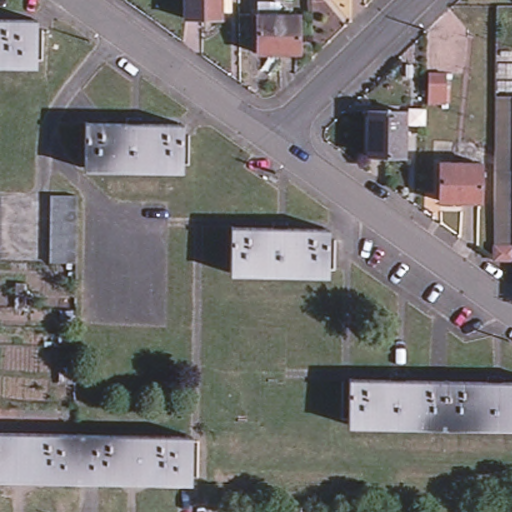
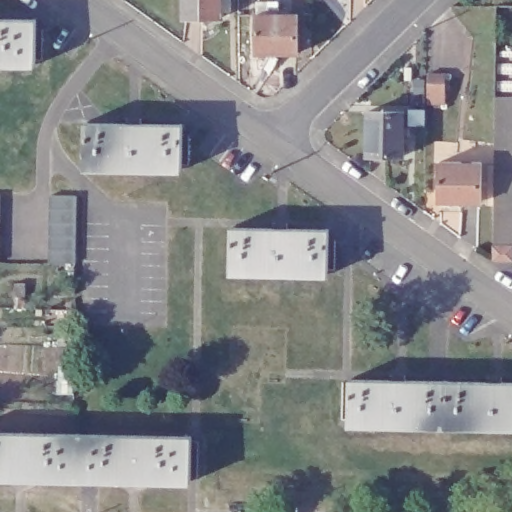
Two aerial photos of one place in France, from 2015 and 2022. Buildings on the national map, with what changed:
unchanged [(220,10),(220,18),(183,18),(183,0),(230,0),(230,9),(220,10)]
unchanged [(257,15),(260,15),(259,1),(280,0),(280,14),(298,14),(300,53),(257,53),(257,15)]
unchanged [(39,62),(0,61),(0,17),(40,18),(39,62)]
unchanged [(496,209),(496,194),(496,180),(497,166),(497,154),(497,141),(497,125),(497,112),(497,98),(512,99),(512,243),(495,243),(495,228),(496,209)]
unchanged [(368,155),(368,112),(407,113),(406,156),(368,155)]
unchanged [(88,124),(183,127),(182,171),(87,169),(88,124)]
unchanged [(440,164),(482,164),(482,202),(438,202),(440,164)]
unchanged [(47,246),(47,232),(47,218),(47,205),(47,192),(73,192),(73,205),(73,218),(73,232),(73,246),(73,259),(47,259),(47,246)]
unchanged [(336,233),(334,275),(237,271),(238,229),(336,233)]
unchanged [(495,259),(495,248),(512,248),(512,259),(495,259)]
unchanged [(352,383),(393,383),(393,377),(408,377),(408,383),(448,383),(448,427),(352,426),(352,383)]
unchanged [(490,377),(505,377),(504,384),(512,384),(512,427),(448,427),(448,383),(490,384),(490,377)]
unchanged [(15,483),(15,477),(0,476),(0,431),(79,434),(77,479),(28,477),(28,483),(15,483)]
unchanged [(127,486),(127,479),(77,479),(79,434),(190,437),(189,482),(140,480),(140,486),(127,486)]

